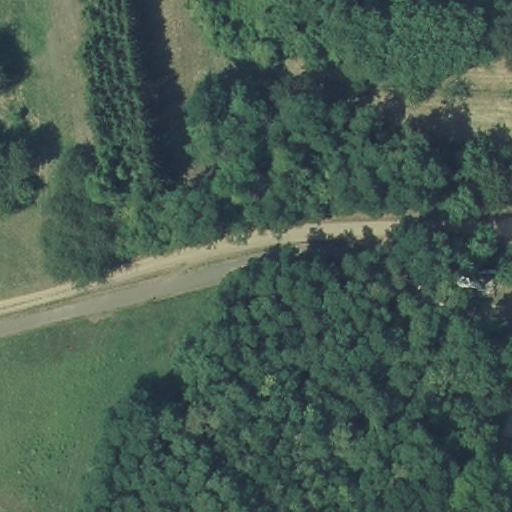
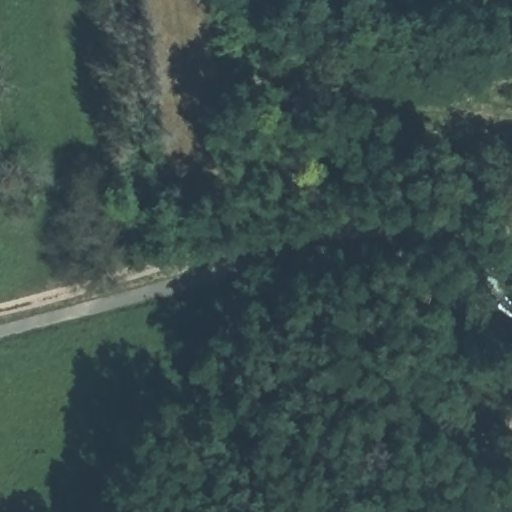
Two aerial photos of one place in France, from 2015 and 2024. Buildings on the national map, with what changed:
[]

